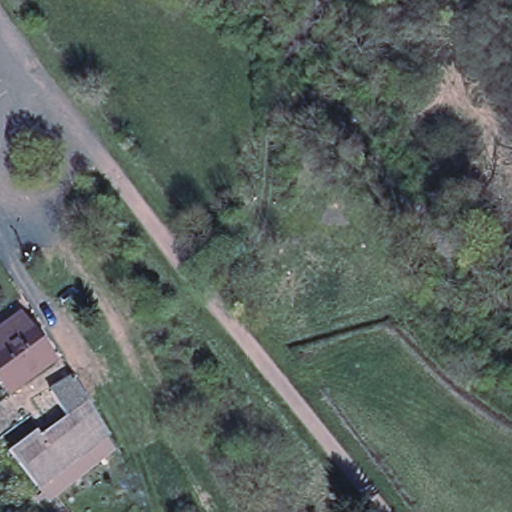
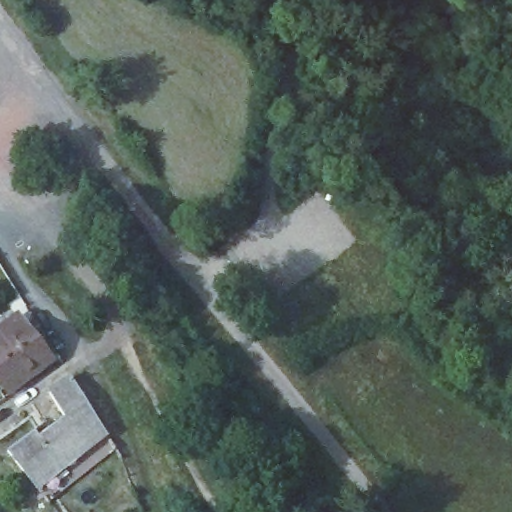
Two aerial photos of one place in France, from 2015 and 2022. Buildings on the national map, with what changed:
unchanged [(5,392),(0,385),(0,329),(16,319),(47,364),(5,392)]
unchanged [(55,479),(31,449),(67,422),(52,394),(65,387),(99,443),(55,479)]

